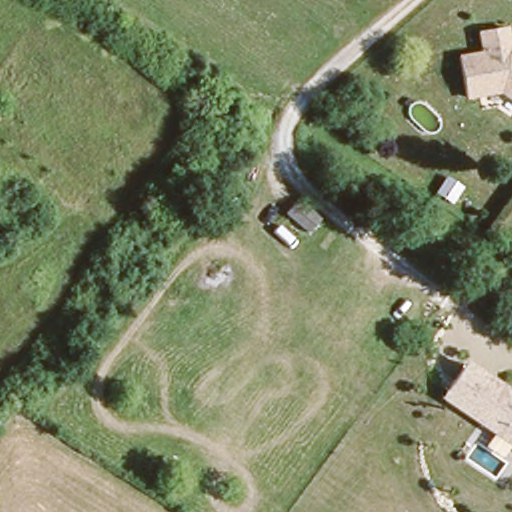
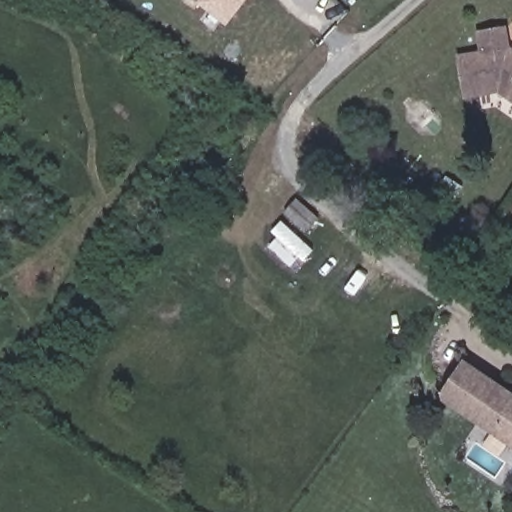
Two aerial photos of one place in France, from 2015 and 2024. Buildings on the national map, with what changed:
new [(225,26),(199,1),(200,0),(247,0),(225,26)]
unchanged [(512,44),(512,94),(489,76),(457,83),(449,42),(473,37),(469,18),(495,13),(500,33),(495,38),(505,45),(512,44)]
unchanged [(512,393),(512,447),(508,445),(500,458),(482,449),(492,433),(438,397),(463,360),(512,393)]

